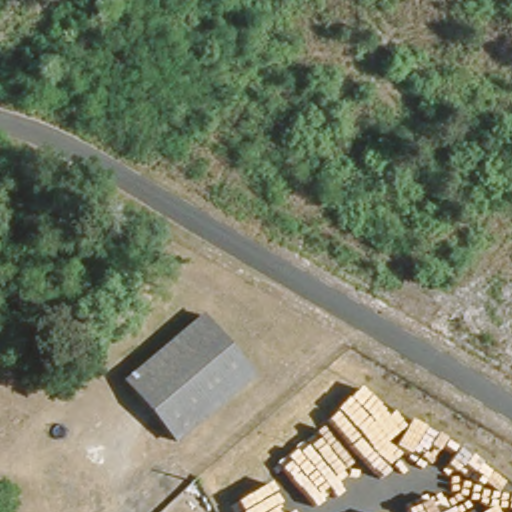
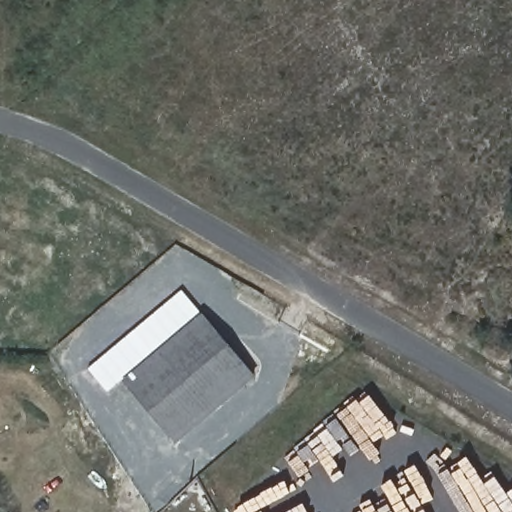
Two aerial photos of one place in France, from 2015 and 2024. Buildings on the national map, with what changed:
new [(129,372),(109,391),(89,368),(182,289),(202,312),(214,318),(129,372)]
unchanged [(172,437),(129,372),(214,318),(257,384),(172,437)]

